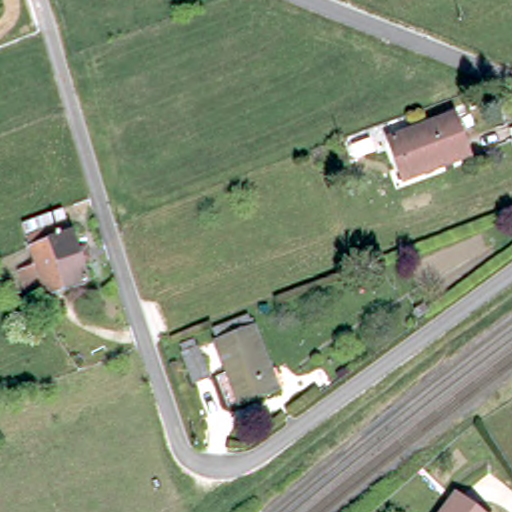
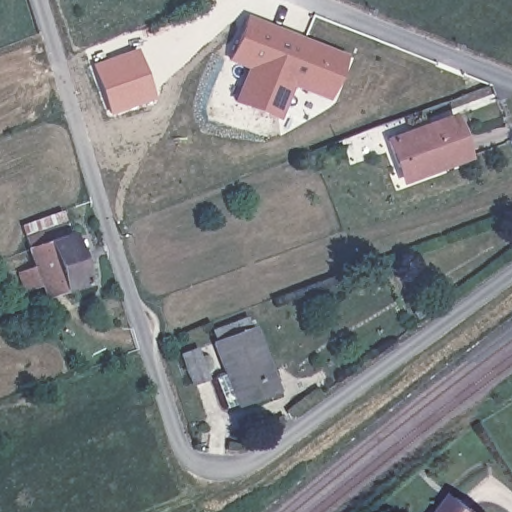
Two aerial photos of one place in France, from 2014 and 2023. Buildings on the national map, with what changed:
new [(327,101),(293,87),(280,121),(233,103),(247,69),(229,61),(247,15),(346,55),(327,101)]
unchanged [(411,176),(403,161),(398,163),(388,137),(452,112),(468,152),(411,176)]
unchanged [(91,283),(50,298),(47,288),(30,293),(23,272),(40,267),(35,249),(38,247),(35,236),(52,229),(70,223),(91,283)]
unchanged [(222,377),(233,371),(220,342),(226,339),(221,329),(251,316),(257,327),(260,325),(285,385),(246,402),(245,401),(235,406),(222,377)]
unchanged [(201,385),(188,355),(205,349),(217,378),(201,385)]
unchanged [(457,496),(478,512),(446,512),(457,496)]

